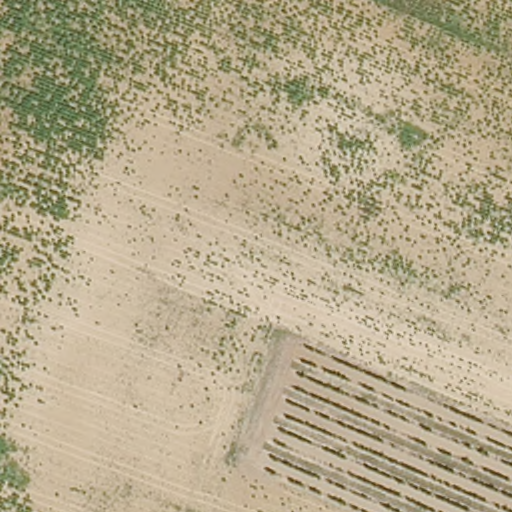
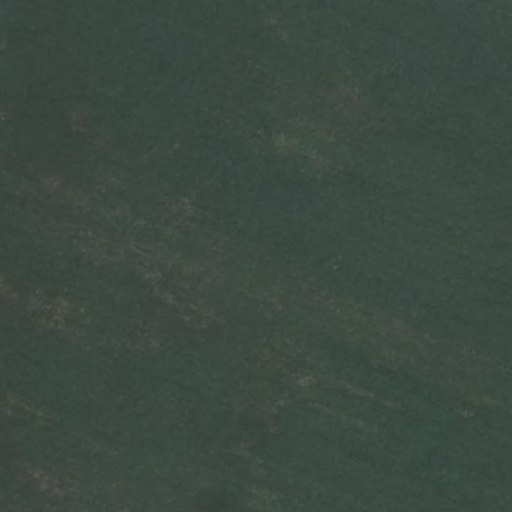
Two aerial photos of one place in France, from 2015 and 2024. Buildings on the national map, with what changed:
[]

